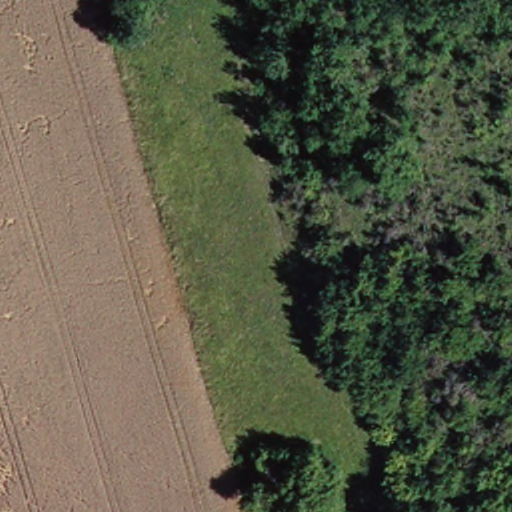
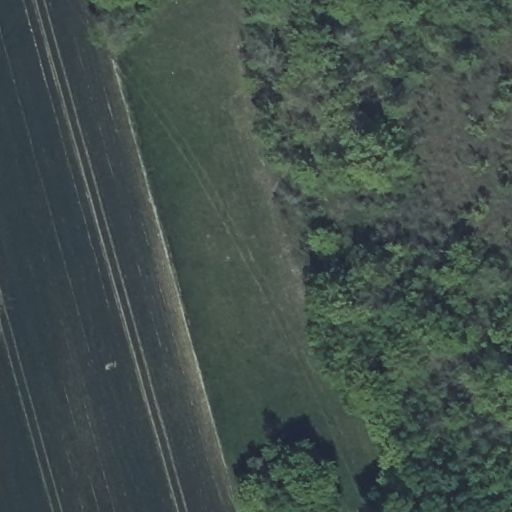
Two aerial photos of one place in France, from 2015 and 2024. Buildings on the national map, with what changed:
unchanged [(281,444),(287,473),(262,479),(255,450),(281,444)]

